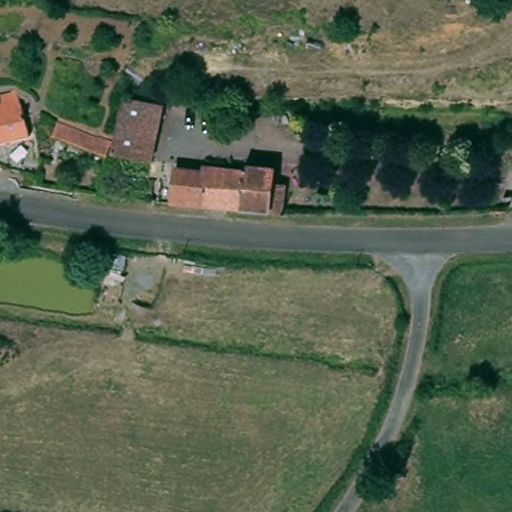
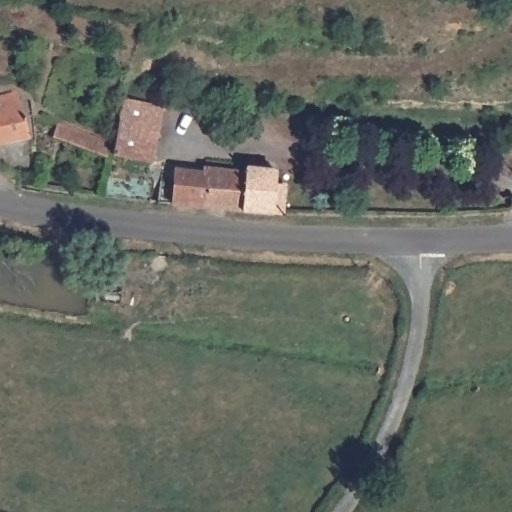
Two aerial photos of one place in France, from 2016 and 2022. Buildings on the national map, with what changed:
unchanged [(123,80),(162,89),(150,145),(111,136),(123,80)]
unchanged [(13,94),(18,138),(0,142),(0,95),(13,94)]
unchanged [(53,120),(110,142),(105,154),(48,132),(53,120)]
unchanged [(238,166),(234,206),(197,202),(201,161),(238,166)]
unchanged [(274,210),(259,208),(234,206),(238,166),(239,161),(251,162),(263,163),(262,178),(277,180),(274,210)]
unchanged [(168,199),(171,169),(200,171),(197,202),(168,199)]

